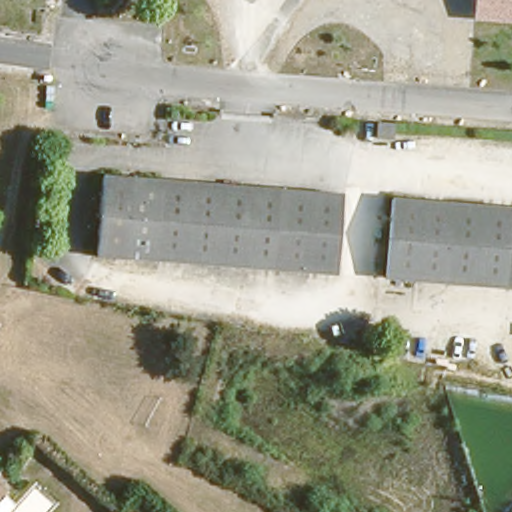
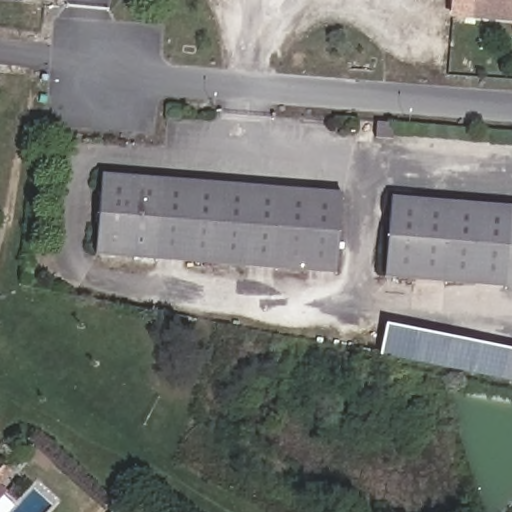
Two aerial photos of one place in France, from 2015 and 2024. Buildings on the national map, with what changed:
unchanged [(480,16),(481,0),(512,0),(512,18),(480,16)]
unchanged [(403,136),(384,136),(384,119),(405,119),(403,136)]
unchanged [(338,190),(332,269),(93,252),(99,173),(338,190)]
unchanged [(383,192),(512,200),(512,279),(378,271),(383,192)]
new [(380,354),(386,324),(512,350),(512,381),(380,354)]
unchanged [(0,502),(0,484),(9,493),(0,502)]

